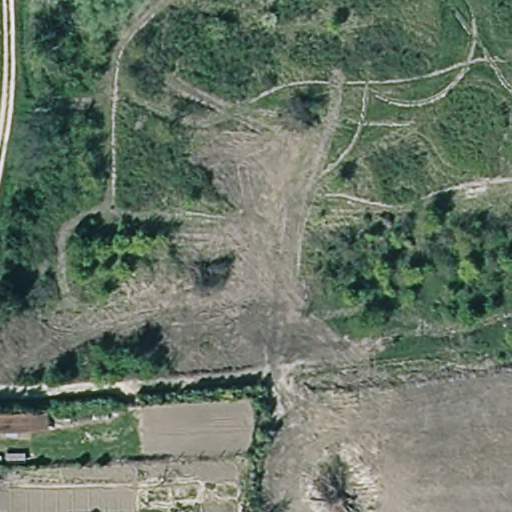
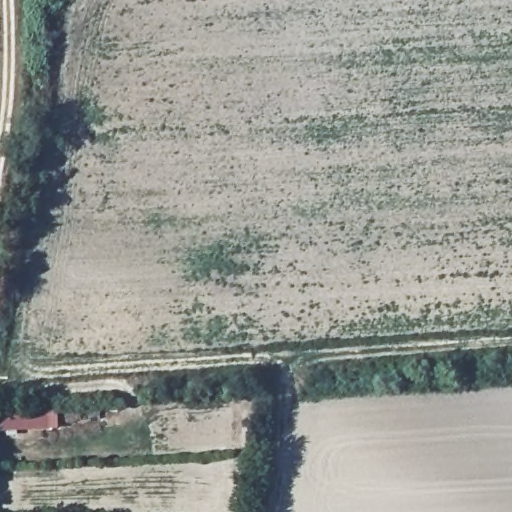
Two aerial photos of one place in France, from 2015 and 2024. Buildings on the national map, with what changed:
unchanged [(11,432),(10,412),(54,409),(53,431),(11,432)]

